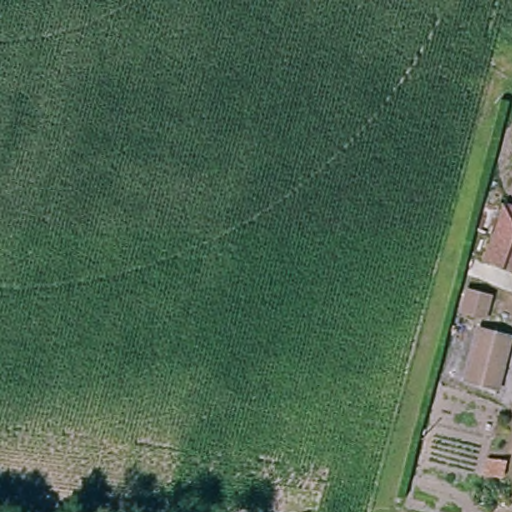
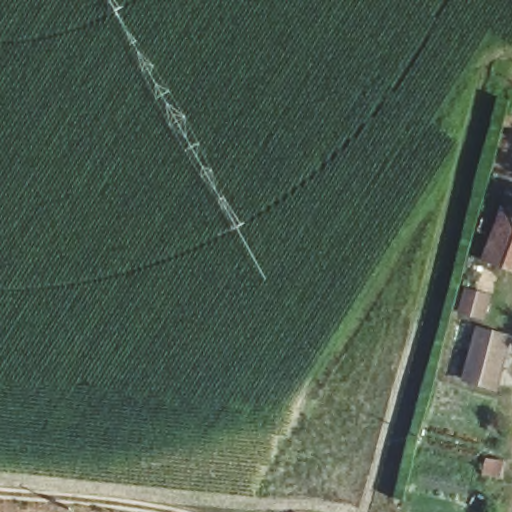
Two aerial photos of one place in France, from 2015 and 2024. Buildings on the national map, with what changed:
unchanged [(512,217),(512,267),(495,263),(507,216),(512,217)]
unchanged [(491,395),(485,392),(462,382),(480,329),(511,339),(504,359),(491,395)]

